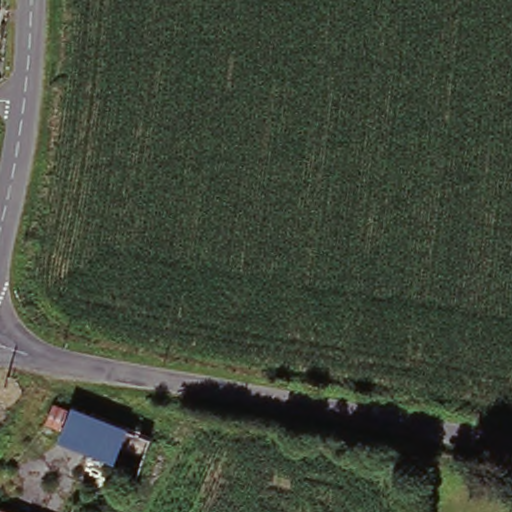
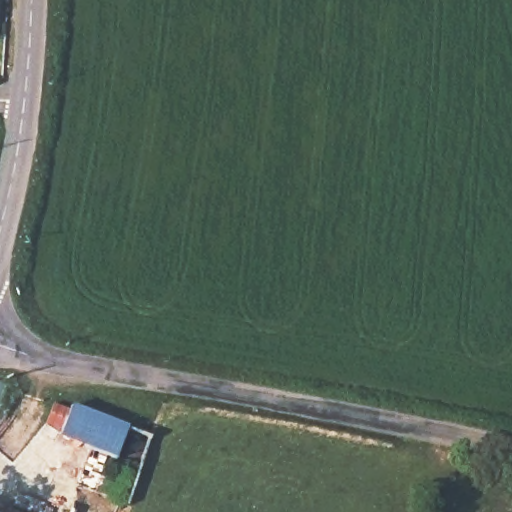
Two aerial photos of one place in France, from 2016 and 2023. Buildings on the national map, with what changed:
unchanged [(89,455),(92,448),(61,438),(63,432),(47,426),(54,410),(70,415),(72,408),(128,430),(115,464),(89,455)]
unchanged [(4,512),(0,512),(0,511),(4,512)]

